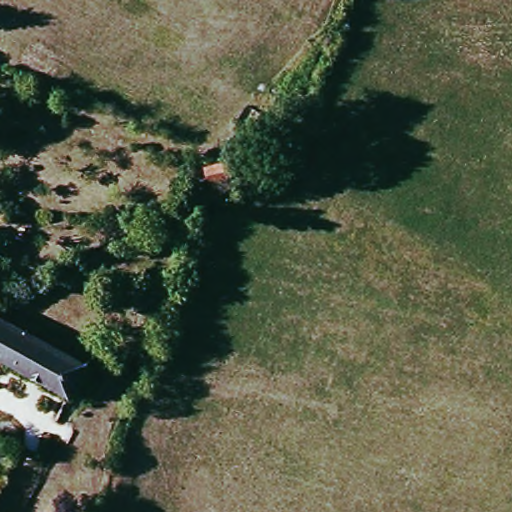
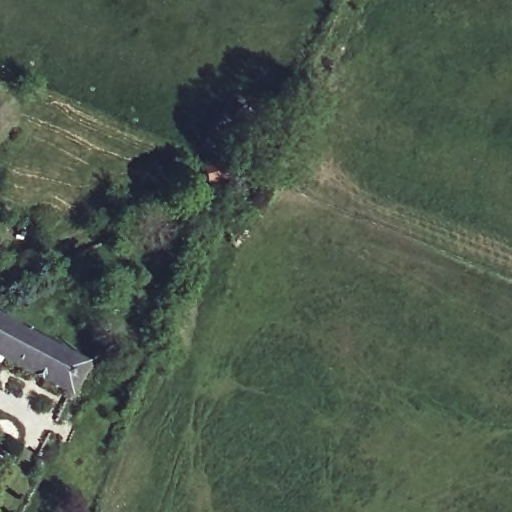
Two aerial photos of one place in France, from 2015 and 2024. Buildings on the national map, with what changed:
unchanged [(0,356),(0,324),(81,360),(68,385),(0,356)]

